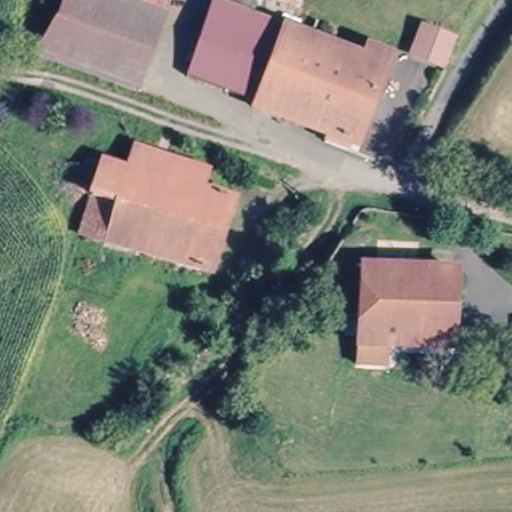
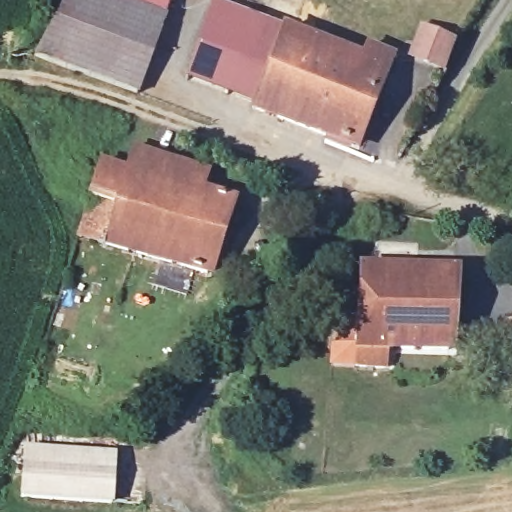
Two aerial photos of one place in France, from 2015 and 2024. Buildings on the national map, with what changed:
unchanged [(60,0),(130,0),(162,12),(134,85),(40,45),(47,34),(58,5),(60,0)]
unchanged [(162,12),(130,0),(167,0),(162,12)]
unchanged [(255,8),(236,45),(196,30),(208,0),(234,0),(255,8)]
unchanged [(228,66),(236,45),(255,8),(311,29),(365,49),(369,37),(391,45),(385,59),(390,61),(359,138),(223,86),(225,79),(197,68),(201,56),(228,66)]
unchanged [(445,64),(411,51),(416,37),(421,23),(460,37),(445,64)]
unchanged [(136,139),(203,160),(200,182),(232,186),(207,272),(108,239),(114,216),(129,164),(136,139)]
unchanged [(105,158),(129,164),(114,216),(88,209),(105,158)]
unchanged [(355,361),(357,339),(366,257),(458,270),(447,344),(399,342),(398,363),(355,361)]
unchanged [(505,375),(508,352),(512,353),(512,376),(505,375)]
new [(22,446),(116,452),(113,506),(19,500),(22,446)]

